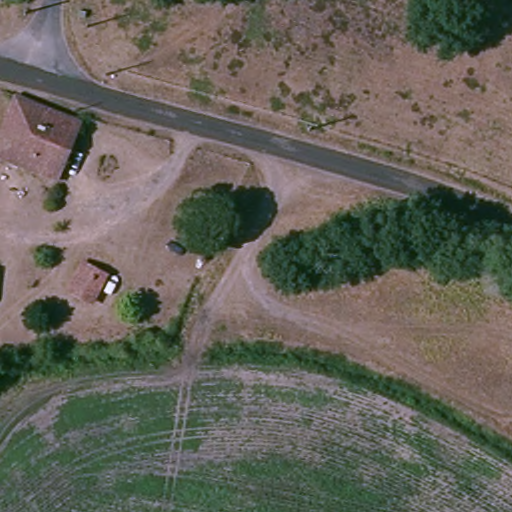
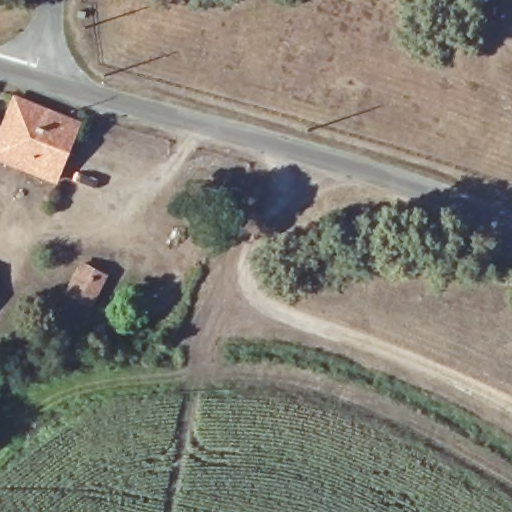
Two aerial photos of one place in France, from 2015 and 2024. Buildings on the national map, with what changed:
unchanged [(23,106),(75,129),(56,170),(4,146),(23,106)]
unchanged [(111,276),(95,303),(72,289),(91,265),(111,276)]

